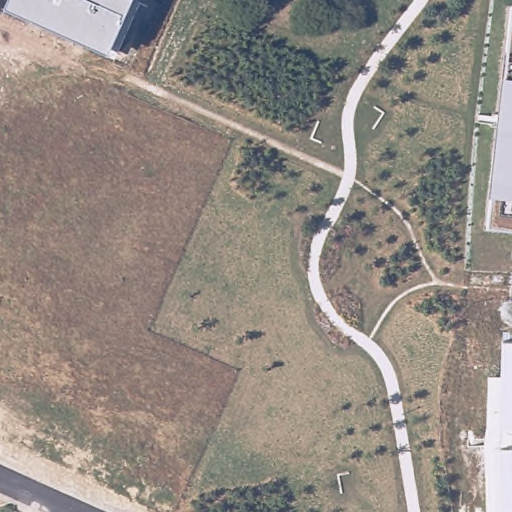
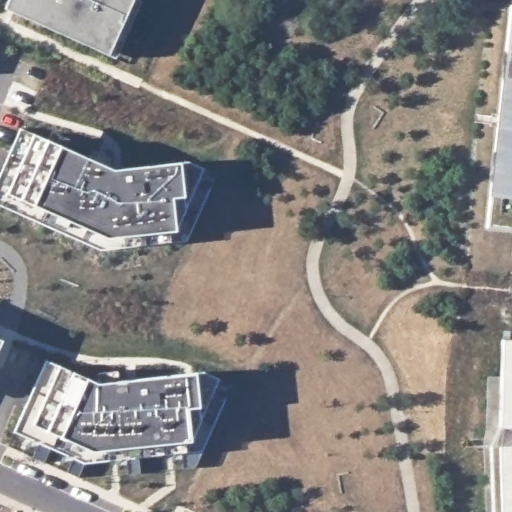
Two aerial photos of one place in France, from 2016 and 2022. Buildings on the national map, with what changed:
unchanged [(141,1),(116,56),(109,53),(6,7),(9,0),(138,0),(141,1)]
unchanged [(488,196),(502,76),(510,5),(512,5),(512,229),(486,226),(488,196)]
new [(8,194),(21,200),(33,206),(104,237),(173,230),(185,208),(202,169),(215,174),(187,241),(99,250),(0,206),(0,176),(22,130),(35,135),(8,194)]
new [(185,208),(173,230),(104,237),(33,206),(21,200),(8,194),(35,135),(48,141),(60,146),(114,170),(180,162),(186,161),(202,169),(185,208)]
unchanged [(496,426),(501,339),(512,339),(512,512),(492,512),(491,445),(496,426)]
new [(1,341),(0,342),(0,341),(1,341)]
new [(83,463),(15,432),(48,360),(61,367),(34,425),(47,430),(60,436),(91,451),(189,438),(200,417),(217,379),(231,385),(202,450),(83,463)]
new [(91,451),(60,436),(47,430),(34,425),(61,367),(73,372),(86,377),(97,383),(195,373),(203,371),(217,379),(200,417),(189,438),(91,451)]

